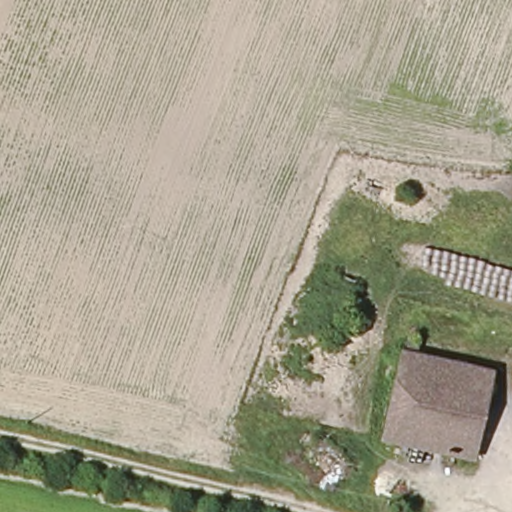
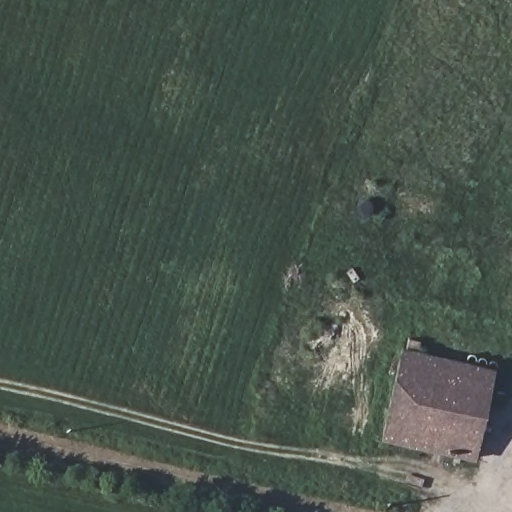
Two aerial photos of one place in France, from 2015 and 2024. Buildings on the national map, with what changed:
unchanged [(403,352),(492,372),(473,454),(385,432),(403,352)]

